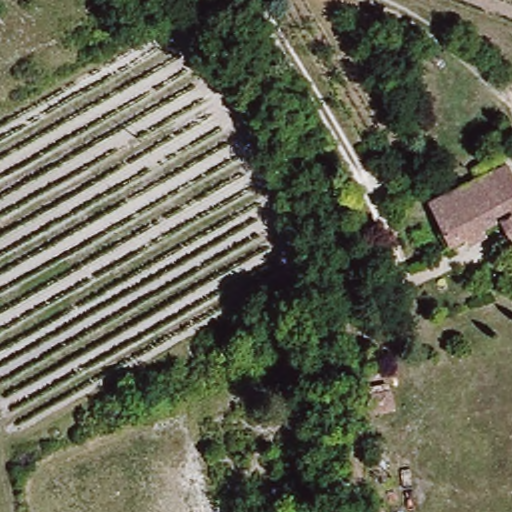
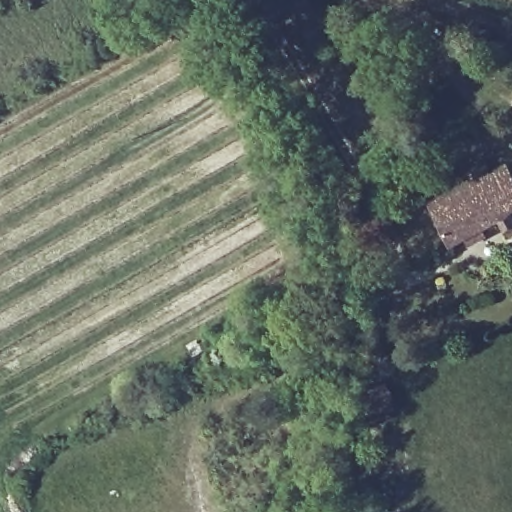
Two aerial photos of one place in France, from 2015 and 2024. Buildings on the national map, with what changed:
unchanged [(511,212),(490,165),(509,157),(512,163),(512,211),(511,212)]
unchanged [(445,239),(425,193),(490,165),(511,212),(512,213),(512,228),(505,231),(500,219),(445,239)]

